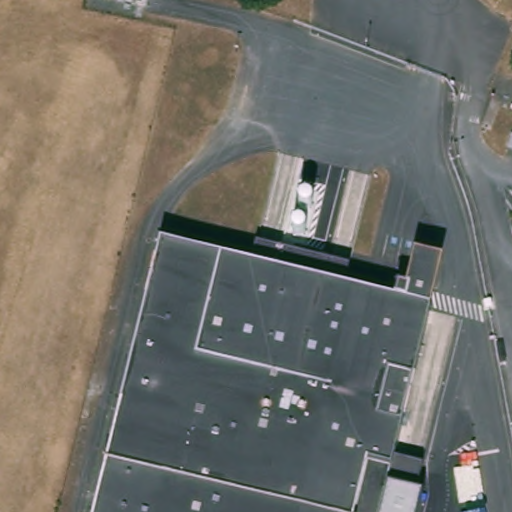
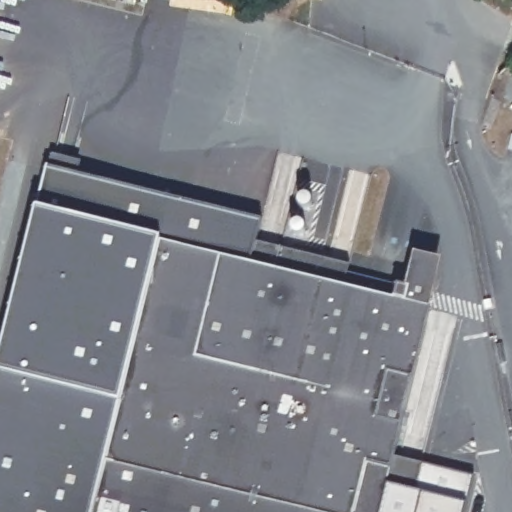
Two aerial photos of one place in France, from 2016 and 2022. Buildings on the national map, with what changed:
new [(166,244),(100,512),(0,512),(0,358),(37,209),(49,169),(260,221),(254,245),(261,246),(256,267),(166,244)]
unchanged [(256,267),(261,246),(353,275),(355,267),(415,290),(417,283),(421,274),(423,272),(425,269),(430,267),(432,267),(435,267),(439,270),(440,271),(442,275),(442,277),(442,280),(440,295),(400,459),(426,466),(419,493),(393,487),(387,512),(100,512),(166,244),(256,267)]

